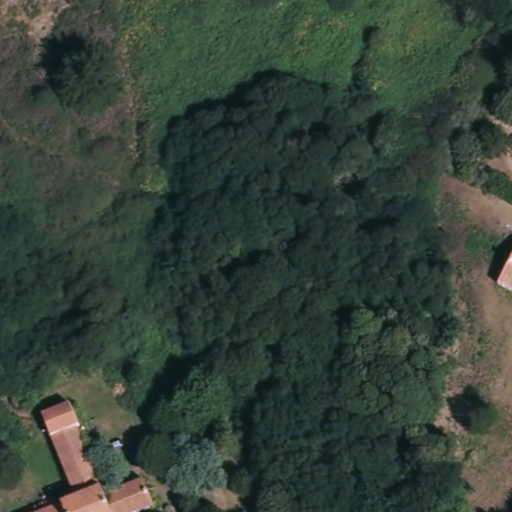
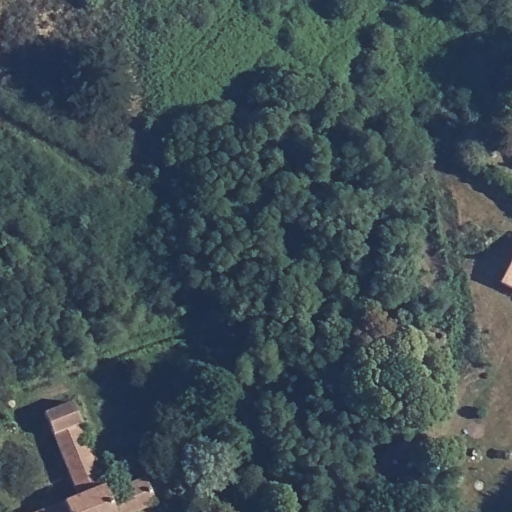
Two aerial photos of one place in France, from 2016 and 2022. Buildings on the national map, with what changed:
unchanged [(512,280),(500,272),(512,256),(512,280)]
unchanged [(85,425),(82,426),(101,494),(141,482),(151,512),(8,512),(70,494),(49,409),(79,401),(85,425)]

